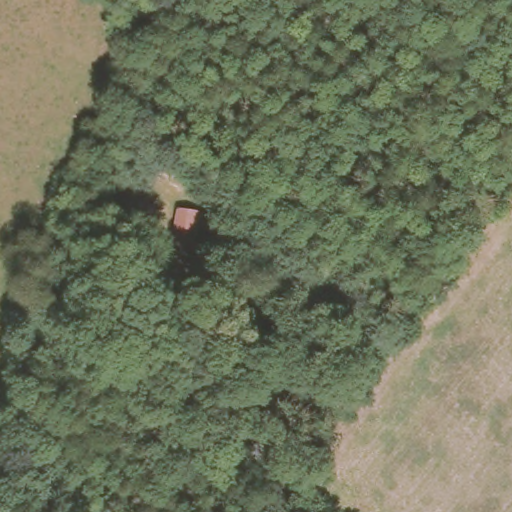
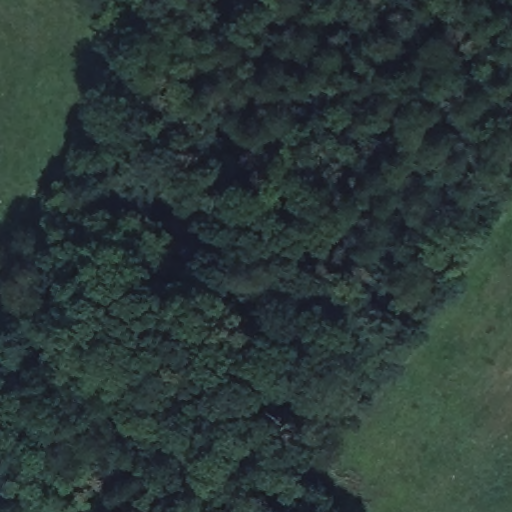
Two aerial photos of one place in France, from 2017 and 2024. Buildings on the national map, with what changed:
unchanged [(196,210),(195,244),(172,243),(172,207),(196,210)]

